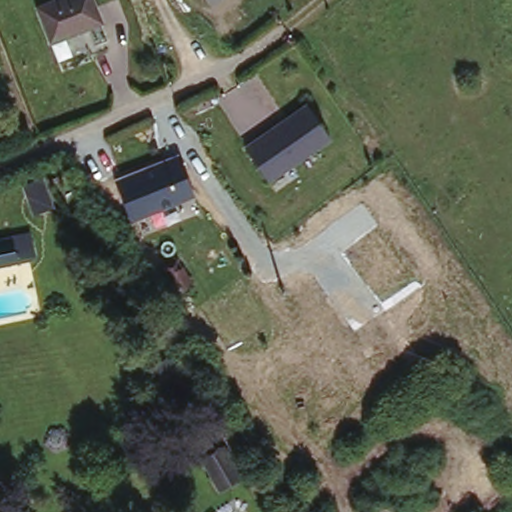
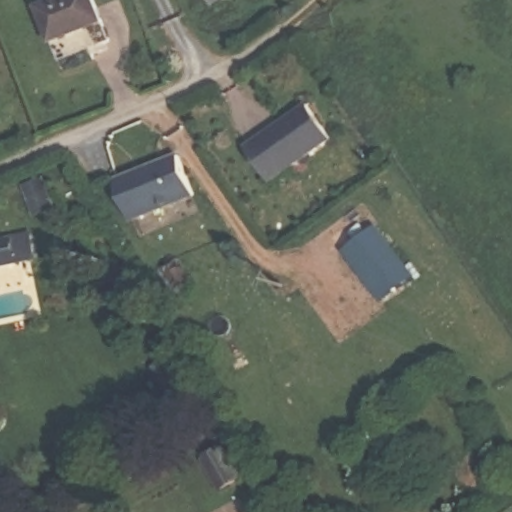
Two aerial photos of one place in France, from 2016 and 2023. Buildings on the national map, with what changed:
unchanged [(94,0),(103,22),(51,43),(37,9),(57,0),(94,0)]
unchanged [(302,99),(326,139),(288,168),(295,180),(276,196),(239,141),(302,99)]
unchanged [(114,180),(180,155),(194,194),(131,220),(114,180)]
unchanged [(31,229),(35,254),(17,259),(0,262),(0,236),(12,233),(31,229)]
new [(416,283),(382,309),(343,253),(378,230),(416,283)]
unchanged [(178,259),(193,284),(179,292),(165,268),(178,259)]
unchanged [(226,457),(242,483),(220,494),(205,469),(226,457)]

